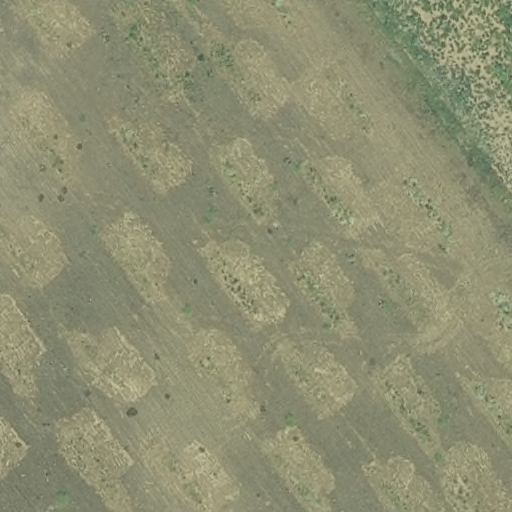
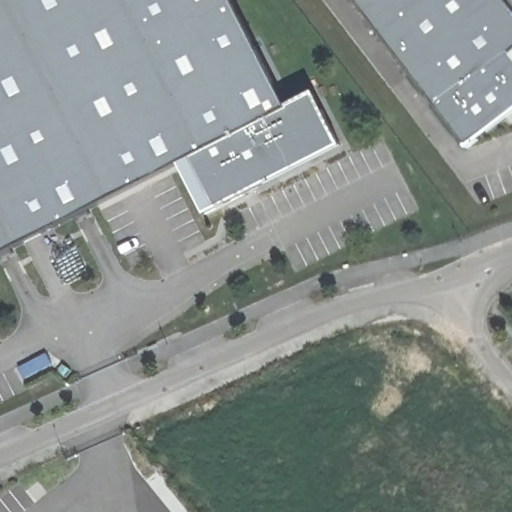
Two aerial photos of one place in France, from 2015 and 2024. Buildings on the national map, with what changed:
new [(234,0),(288,105),(314,92),(341,145),(206,215),(179,165),(0,256),(0,0),(234,0)]
unchanged [(508,119),(468,149),(355,0),(512,0),(512,120),(510,121),(508,119)]

